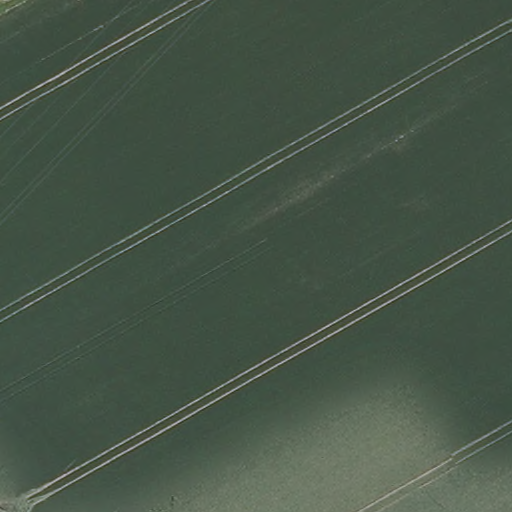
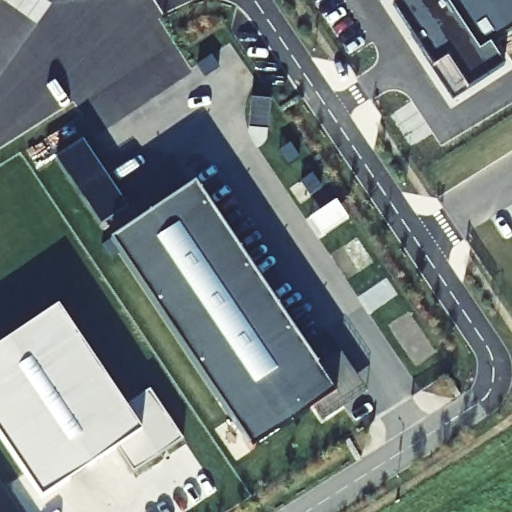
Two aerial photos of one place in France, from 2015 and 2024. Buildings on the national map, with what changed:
new [(488,46),(503,66),(466,90),(452,97),(435,69),(431,70),(391,8),(403,0),(512,0),(512,31),(488,46)]
new [(128,209),(101,227),(55,158),(83,140),(128,209)]
new [(315,370),(341,353),(366,390),(324,420),(316,408),(251,451),(110,241),(195,184),(315,370)]
new [(125,410),(150,392),(181,440),(135,472),(117,448),(43,499),(0,434),(0,347),(60,306),(125,410)]

